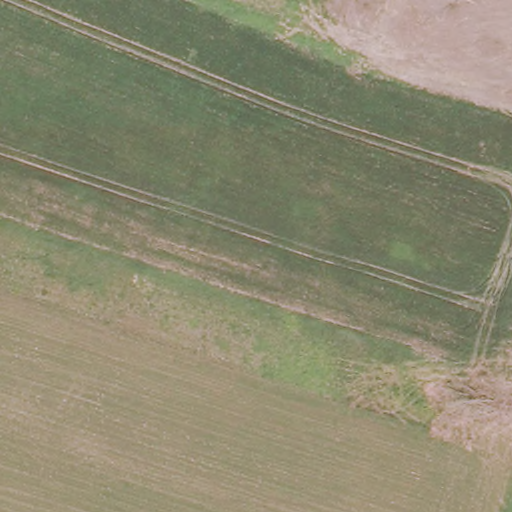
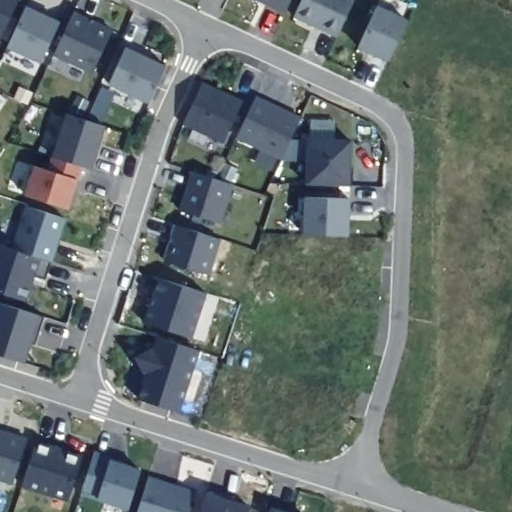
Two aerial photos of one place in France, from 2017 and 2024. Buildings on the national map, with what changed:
new [(0,37),(0,0),(19,0),(0,37)]
new [(286,10),(262,0),(291,0),(286,10)]
new [(338,35),(293,17),(301,0),(354,0),(338,35)]
new [(66,25),(49,64),(9,45),(26,6),(66,25)]
new [(389,59),(359,46),(377,6),(407,21),(389,59)]
new [(113,28),(92,72),(54,55),(75,10),(113,28)]
new [(166,66),(149,101),(110,82),(126,47),(166,66)]
new [(242,101),(224,141),(183,123),(202,82),(242,101)]
new [(301,117),(282,157),(236,136),(256,96),(301,117)]
new [(104,124),(93,168),(53,156),(67,113),(104,124)]
new [(354,168),(353,185),(308,183),(309,138),(351,140),(351,168),(354,168)]
new [(78,178),(70,207),(28,193),(36,165),(78,178)]
new [(231,182),(221,222),(182,210),(193,171),(231,182)]
new [(349,198),(348,235),(304,233),(305,196),(349,198)]
new [(65,217),(52,261),(14,249),(28,205),(65,217)]
new [(219,237),(208,273),(166,259),(177,224),(219,237)]
new [(33,274),(25,299),(0,291),(0,245),(14,249),(52,261),(46,278),(33,274)]
new [(144,321),(147,312),(158,277),(204,291),(193,326),(191,336),(144,321)]
new [(39,334),(33,332),(24,361),(0,354),(0,302),(44,316),(39,334)]
new [(150,349),(153,350),(157,336),(196,349),(191,365),(177,410),(138,397),(146,370),(143,370),(139,361),(141,353),(146,350),(150,349)]
new [(13,484),(0,480),(0,430),(27,437),(13,484)]
new [(22,484),(35,443),(35,440),(82,456),(81,458),(68,499),(22,484)]
new [(94,450),(113,456),(111,459),(141,468),(138,476),(128,507),(81,491),(91,461),(94,450)]
new [(126,464),(111,459),(113,456),(127,461),(126,464)]
new [(166,481),(166,484),(176,487),(176,485),(196,491),(194,494),(189,512),(137,512),(147,479),(148,476),(166,481)]
new [(205,491),(221,496),(220,501),(248,510),(248,511),(247,512),(199,512),(203,497),(205,491)]
new [(272,512),(260,512),(261,508),(272,512)]

